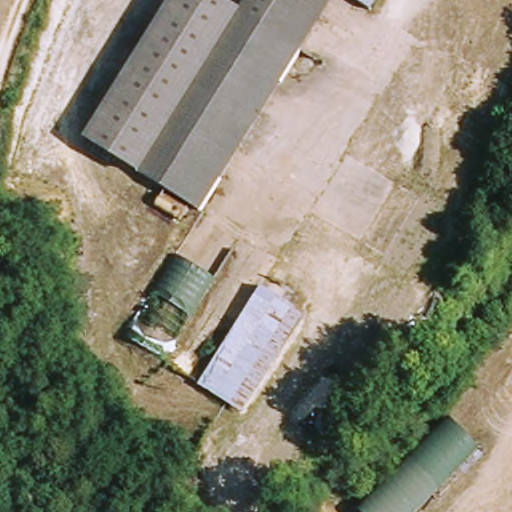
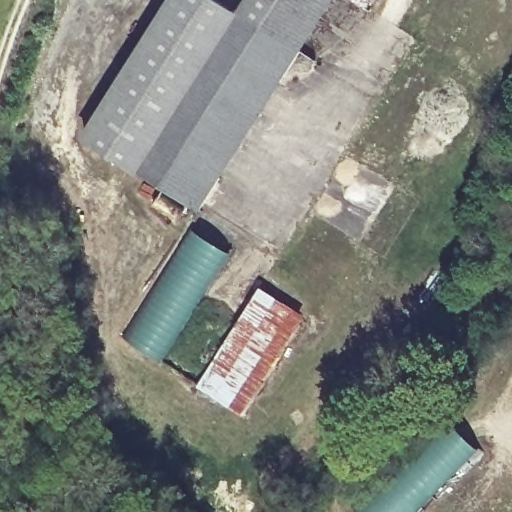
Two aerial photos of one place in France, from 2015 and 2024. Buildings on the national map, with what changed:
unchanged [(118,159),(76,130),(171,0),(204,0),(183,60),(118,159)]
unchanged [(122,164),(118,159),(183,60),(204,0),(226,0),(236,8),(122,164)]
unchanged [(347,0),(349,1),(191,212),(122,164),(236,8),(242,0),(347,0)]
unchanged [(349,1),(347,0),(403,0),(385,27),(349,1)]
new [(123,335),(193,229),(228,253),(158,356),(123,335)]
unchanged [(291,345),(247,315),(274,275),(288,285),(280,296),(310,318),(291,345)]
unchanged [(241,413),(199,383),(247,315),(291,345),(241,413)]
unchanged [(444,421),(474,450),(416,512),(355,512),(444,421)]

